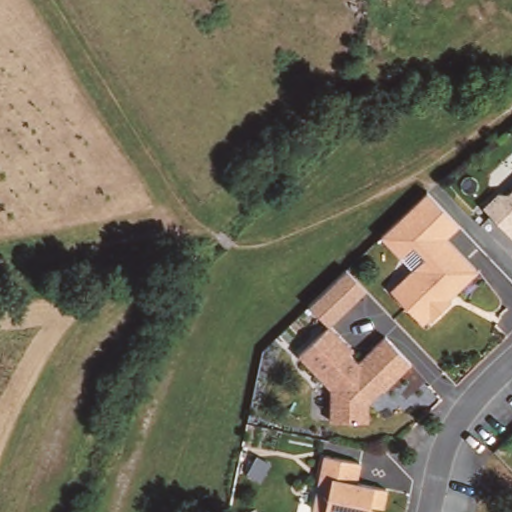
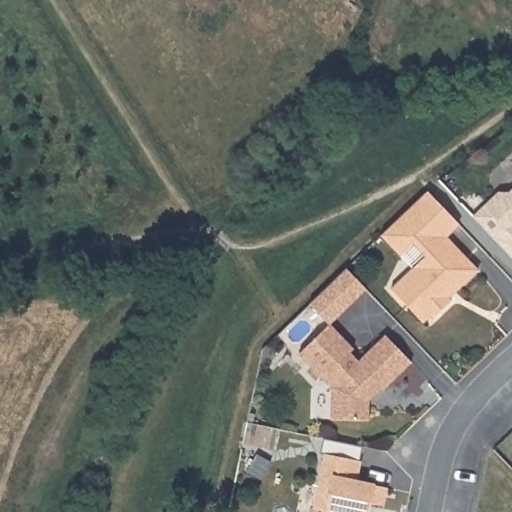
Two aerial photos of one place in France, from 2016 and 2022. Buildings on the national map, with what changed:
unchanged [(483,212),(498,197),(509,198),(512,195),(512,242),(483,212)]
unchanged [(391,295),(426,262),(414,250),(401,262),(381,241),(397,226),(397,225),(419,204),(427,197),(459,230),(446,242),(478,275),(456,297),(448,303),(451,307),(433,323),(426,331),(407,312),(391,295)]
unchanged [(368,425),(330,424),(330,393),(298,359),(329,330),(353,354),(349,357),(358,367),(385,341),(411,367),(383,395),(382,393),(369,406),(368,425)]
unchanged [(355,466),(351,487),(382,492),(378,511),(366,508),(365,512),(310,512),(320,459),(355,466)]

